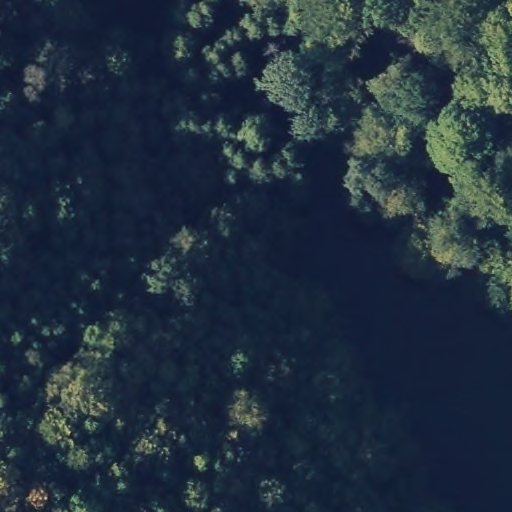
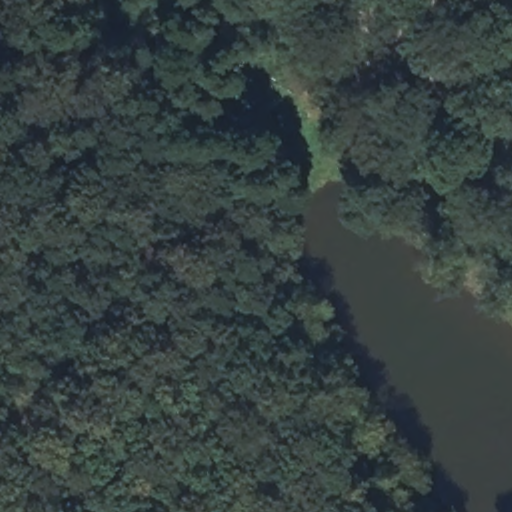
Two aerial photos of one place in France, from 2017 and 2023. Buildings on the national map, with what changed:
unchanged [(392,180),(380,188),(369,168),(377,161),(392,180)]

